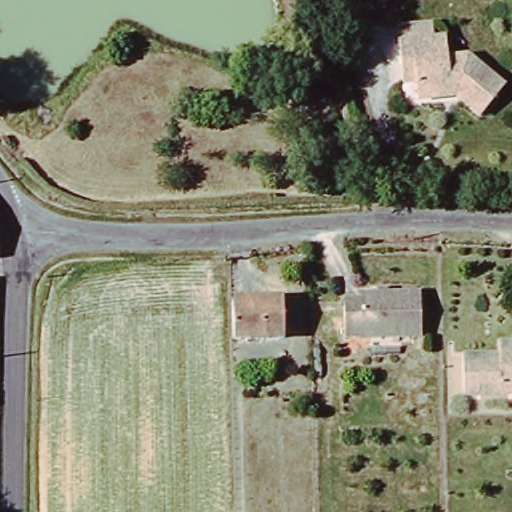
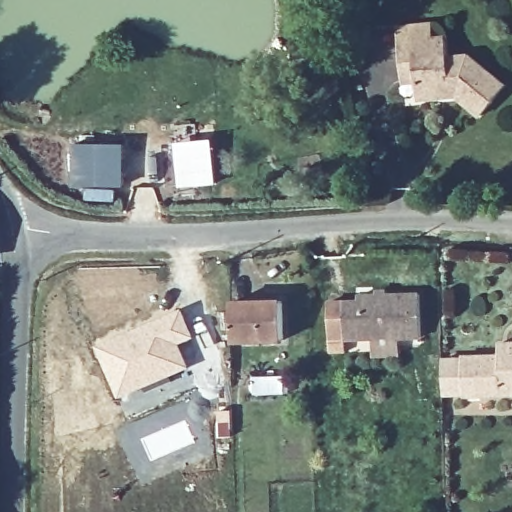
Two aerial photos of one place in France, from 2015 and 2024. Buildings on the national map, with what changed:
unchanged [(454,58),(475,55),(512,86),(512,87),(487,116),(464,97),(423,101),(421,82),(409,84),(406,65),(403,43),(402,28),(437,24),(439,39),(451,37),(454,58)]
new [(212,138),(217,184),(177,188),(173,142),(212,138)]
new [(70,143),(125,142),(125,188),(116,188),(115,202),(85,200),(85,188),(70,188),(70,143)]
unchanged [(350,341),(348,303),(362,303),(362,296),(423,293),(425,337),(350,341)]
unchanged [(280,301),(281,340),(230,342),(229,302),(280,301)]
new [(181,308),(195,338),(180,344),(190,367),(116,399),(92,345),(181,308)]
unchanged [(470,399),(470,359),(506,359),(505,348),(512,347),(512,399),(470,399)]
new [(286,374),(287,394),(251,396),(250,375),(286,374)]

